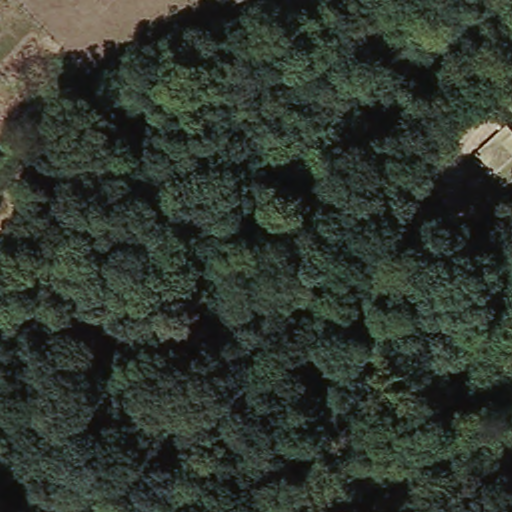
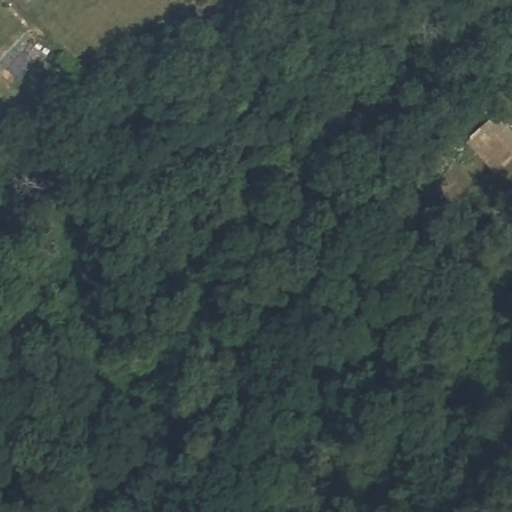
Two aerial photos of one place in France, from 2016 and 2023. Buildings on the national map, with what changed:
unchanged [(477,156),(495,137),(512,155),(512,160),(496,178),(477,156)]

